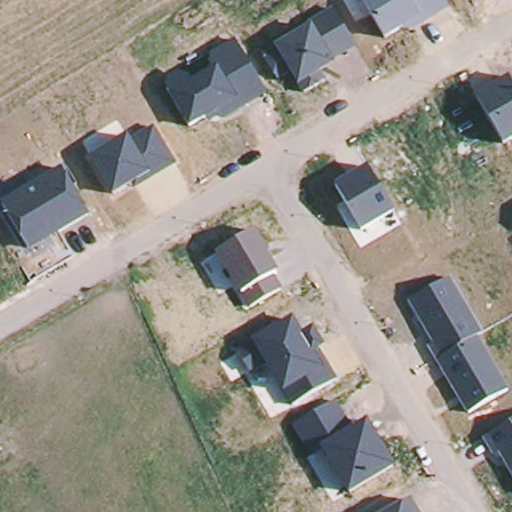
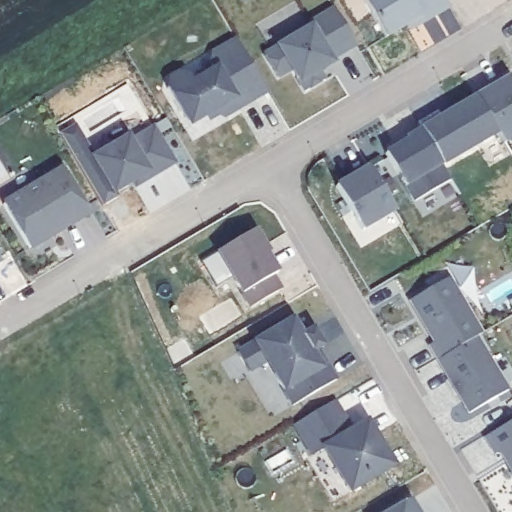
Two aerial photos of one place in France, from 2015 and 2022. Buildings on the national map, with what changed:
unchanged [(409,33),(405,26),(385,38),(362,0),(444,0),(449,9),(409,33)]
unchanged [(358,46),(334,60),(336,63),(320,71),(325,79),(303,93),(298,83),(291,71),(279,79),(263,53),(276,45),(310,23),(334,6),(358,46)]
unchanged [(266,94),(224,119),(216,117),(209,121),(206,116),(190,127),(169,91),(170,80),(183,73),(192,80),(217,67),(210,56),(235,39),(266,94)]
unchanged [(507,77),(512,86),(512,139),(503,145),(474,97),(507,77)]
new [(443,166),(451,181),(413,203),(404,186),(384,151),(421,129),(474,97),(497,135),(443,166)]
unchanged [(177,165),(136,189),(132,183),(112,195),(92,158),(128,136),(132,140),(153,126),(177,165)]
unchanged [(334,184),(366,165),(395,212),(363,231),(334,184)]
unchanged [(3,203),(62,168),(91,215),(31,252),(3,203)]
unchanged [(240,293),(217,253),(256,231),(279,272),(274,274),(282,289),(250,307),(240,293)]
new [(1,263),(0,263),(0,260),(1,263)]
unchanged [(427,348),(432,344),(407,300),(450,276),(483,333),(477,337),(508,390),(467,413),(427,348)]
unchanged [(291,405),(283,393),(266,362),(250,372),(238,350),(253,339),(293,317),(303,334),(314,327),(325,346),(320,349),(337,379),(291,405)]
unchanged [(336,401),(351,428),(367,420),(395,468),(348,493),(323,450),(309,456),(292,425),(336,401)]
unchanged [(493,456),(483,438),(512,421),(512,475),(499,453),(493,456)]
unchanged [(410,499),(418,512),(387,512),(410,499)]

